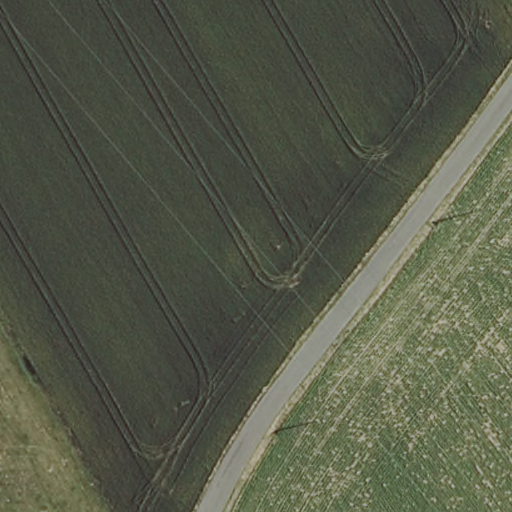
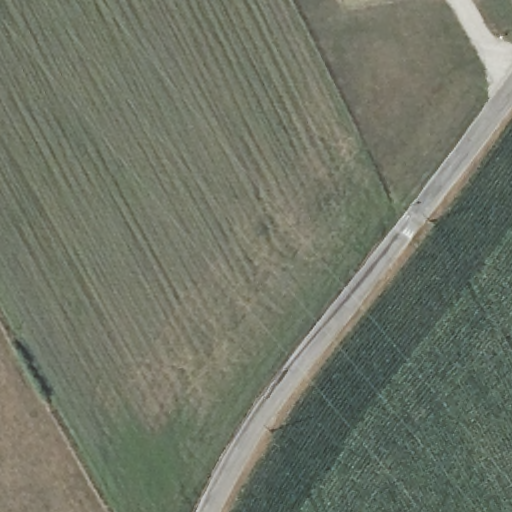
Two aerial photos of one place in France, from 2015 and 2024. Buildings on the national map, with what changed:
[]

